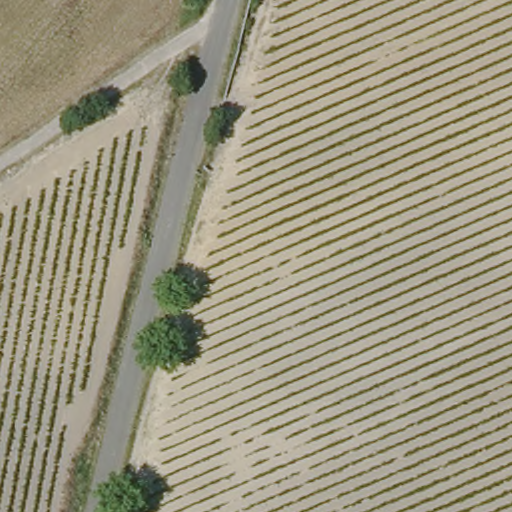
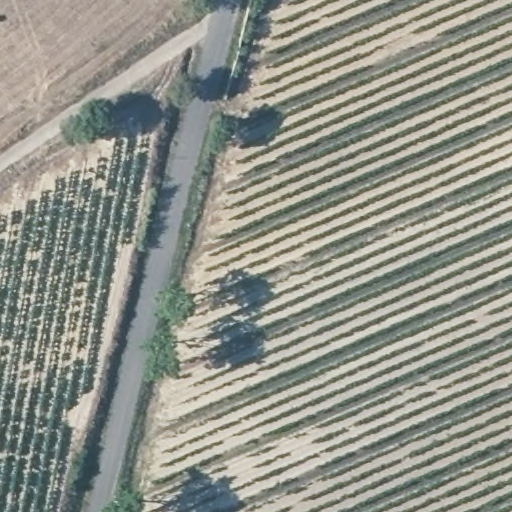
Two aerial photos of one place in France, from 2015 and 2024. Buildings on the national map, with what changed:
[]

